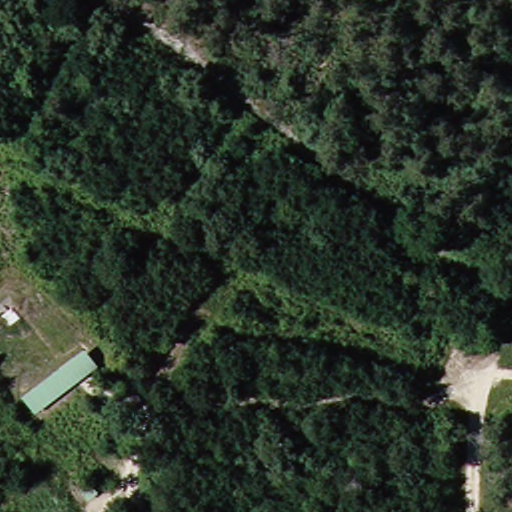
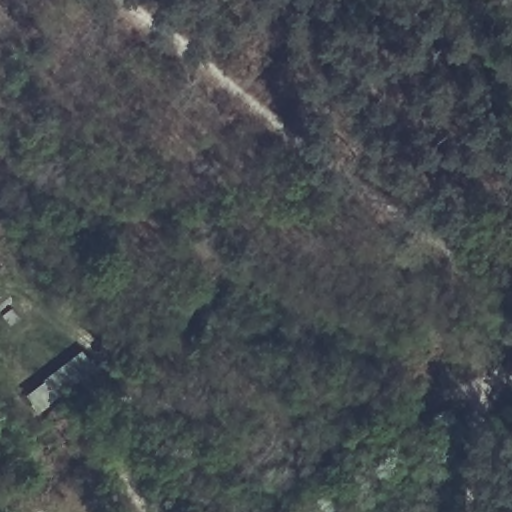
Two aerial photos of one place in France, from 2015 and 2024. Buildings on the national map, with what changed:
unchanged [(93,363),(31,414),(15,397),(78,346),(93,363)]

